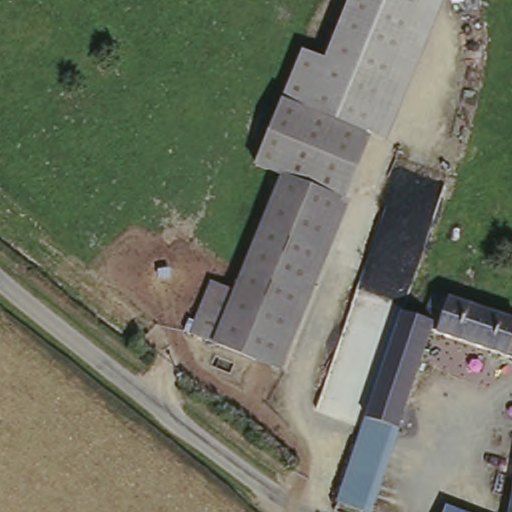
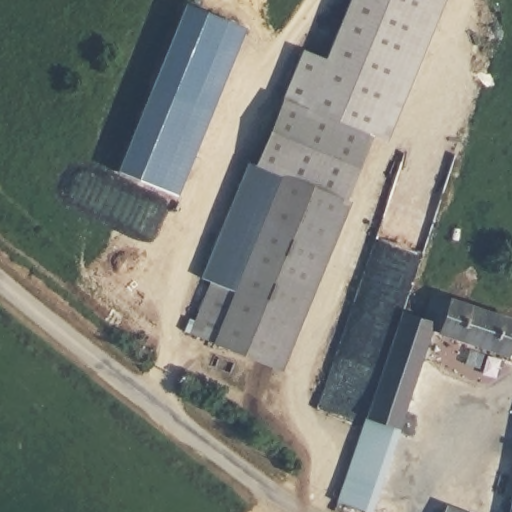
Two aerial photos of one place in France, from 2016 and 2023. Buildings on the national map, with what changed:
unchanged [(282,103),(304,46),(326,54),(348,0),(448,0),(391,143),(369,140),(282,103)]
new [(244,27),(177,196),(117,172),(184,3),(206,12),(244,27)]
unchanged [(278,377),(187,338),(211,284),(198,279),(247,167),(252,170),(282,103),(369,140),(342,203),(352,207),(278,377)]
unchanged [(396,317),(425,326),(437,294),(512,323),(512,340),(511,341),(504,356),(430,334),(401,408),(391,436),(359,424),(396,317)]
unchanged [(391,436),(363,512),(341,512),(331,508),(359,424),(391,436)]
unchanged [(512,512),(506,512),(512,485),(512,512)]
unchanged [(467,512),(443,512),(445,504),(467,512)]

